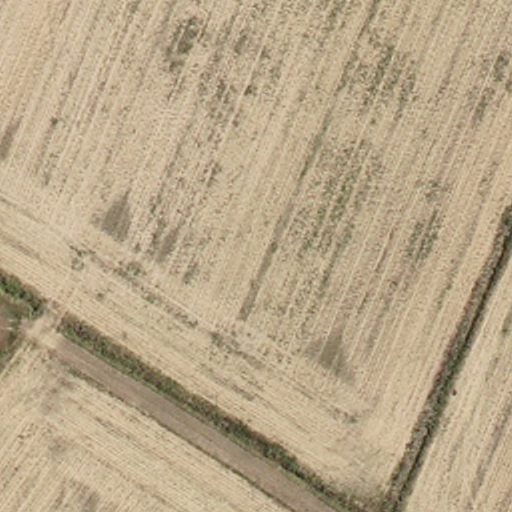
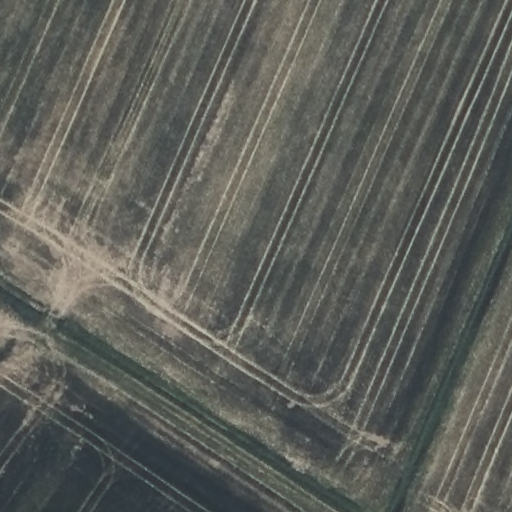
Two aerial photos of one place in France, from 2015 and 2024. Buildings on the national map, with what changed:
[]

